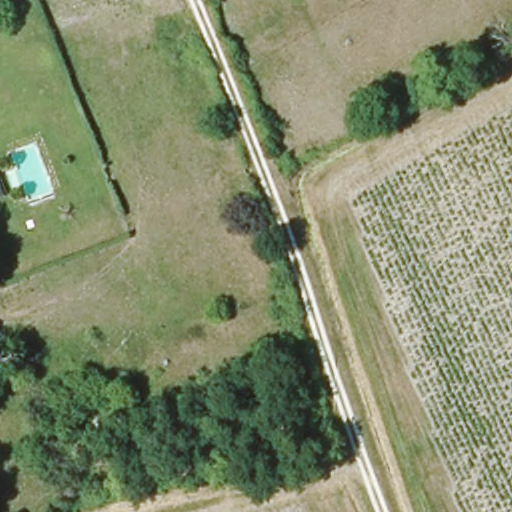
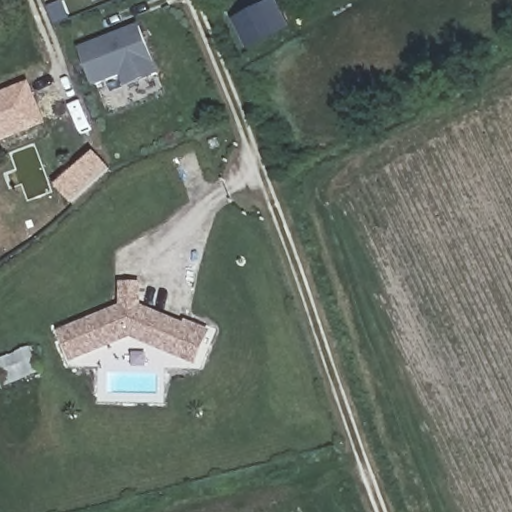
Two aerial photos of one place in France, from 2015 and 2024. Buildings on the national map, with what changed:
demolished [(95,0),(98,0),(96,1),(95,0)]
new [(251,48),(235,17),(265,0),(279,0),(291,24),(251,48)]
new [(126,88),(123,76),(96,87),(81,47),(141,24),(161,74),(126,88)]
new [(48,125),(0,144),(0,95),(32,83),(48,125)]
new [(96,153),(110,168),(72,202),(58,187),(96,153)]
new [(189,323),(210,332),(197,361),(132,335),(74,359),(62,332),(124,307),(124,285),(140,285),(141,307),(141,308),(187,327),(189,323)]

